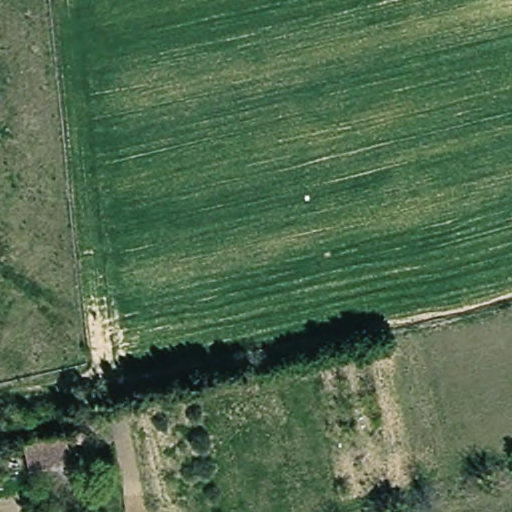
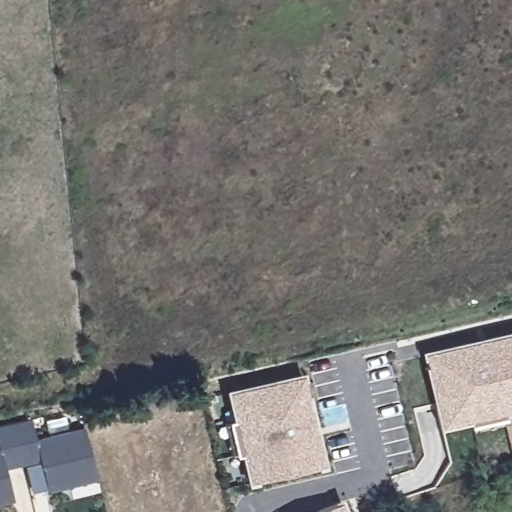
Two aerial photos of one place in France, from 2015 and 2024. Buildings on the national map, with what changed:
new [(512,332),(512,414),(505,416),(506,420),(472,428),(471,423),(440,431),(422,352),(512,332)]
new [(246,456),(234,459),(227,427),(238,425),(231,395),(243,392),(304,378),(311,408),(304,410),(311,440),(318,438),(325,468),(264,482),(252,485),(246,456)]
new [(36,438),(84,427),(98,480),(48,492),(41,461),(7,470),(14,501),(0,505),(0,426),(31,418),(36,438)]
demolished [(70,438),(75,465),(32,473),(28,447),(70,438)]
new [(342,506),(344,512),(326,512),(342,506)]

